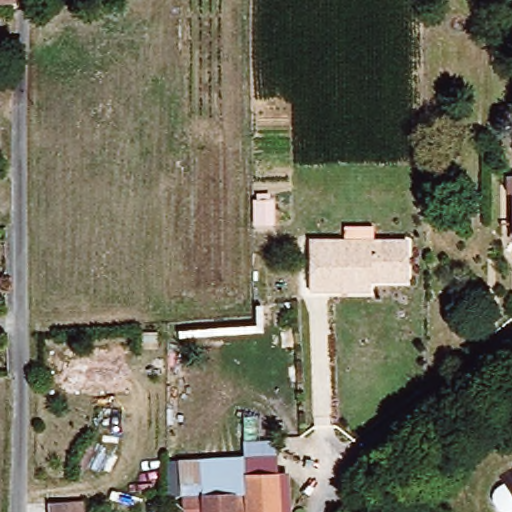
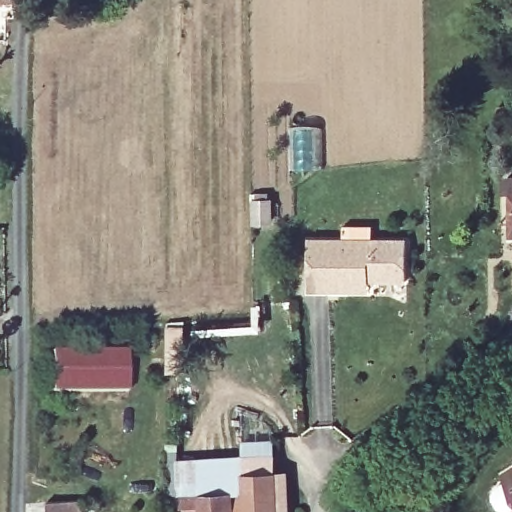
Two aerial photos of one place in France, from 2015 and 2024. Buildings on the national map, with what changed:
unchanged [(510,175),(512,175),(512,193),(510,193),(510,175)]
unchanged [(333,291),(312,291),(311,241),(409,240),(409,280),(371,280),(372,290),(333,291)]
new [(53,392),(52,352),(126,351),(127,392),(53,392)]
unchanged [(185,508),(185,490),(205,489),(234,487),(246,487),(245,454),(279,452),(280,470),(295,471),(296,512),(206,512),(206,507),(185,508)]
unchanged [(205,489),(205,456),(245,454),(246,487),(234,487),(205,489)]
unchanged [(512,478),(512,491),(507,481),(512,478)]
unchanged [(47,512),(47,499),(81,497),(82,512),(47,512)]

